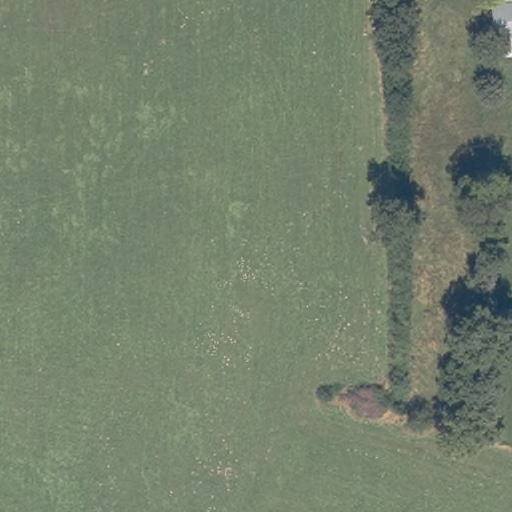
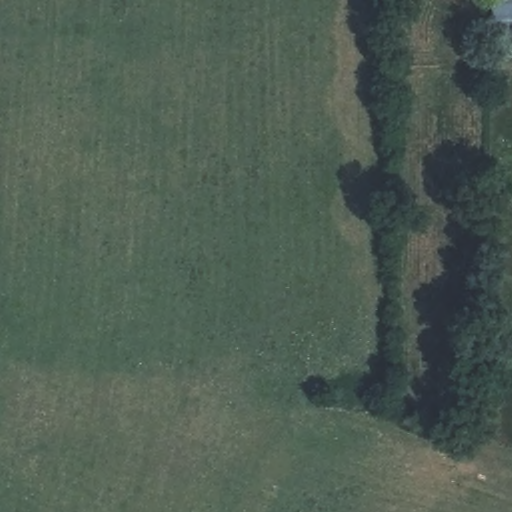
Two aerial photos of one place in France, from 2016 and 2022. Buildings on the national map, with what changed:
unchanged [(512,0),(512,34),(498,36),(494,0),(512,0)]

